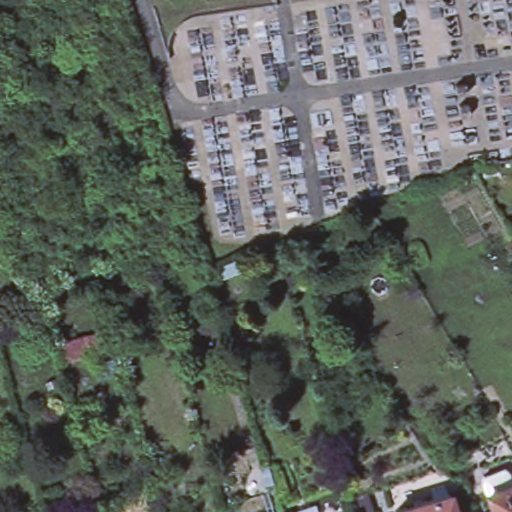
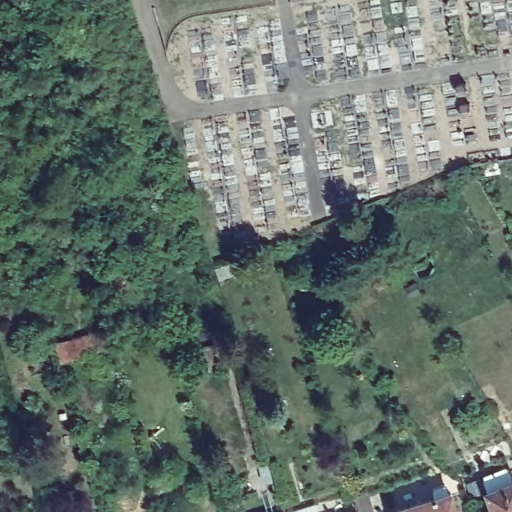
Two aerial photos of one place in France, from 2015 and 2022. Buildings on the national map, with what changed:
unchanged [(53,287),(70,282),(72,290),(73,292),(55,298),(54,296),(53,287)]
unchanged [(118,346),(86,355),(87,358),(63,365),(58,348),(114,331),(118,346)]
unchanged [(171,475),(174,487),(158,491),(155,480),(171,475)]
unchanged [(495,512),(489,495),(484,483),(504,476),(509,487),(512,486),(512,512),(495,512)]
unchanged [(366,497),(371,512),(359,512),(355,500),(366,497)]
unchanged [(431,512),(429,505),(453,497),(457,512),(431,512)]

